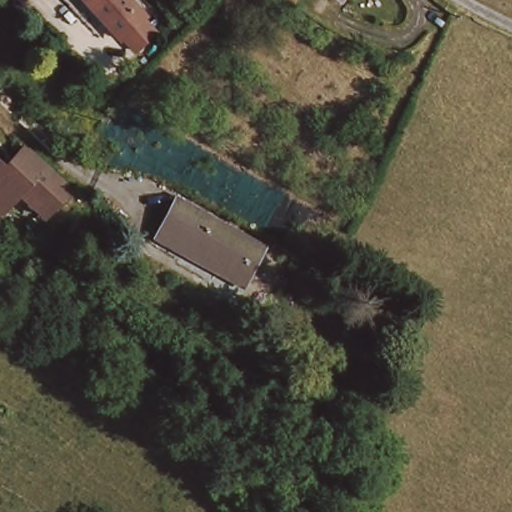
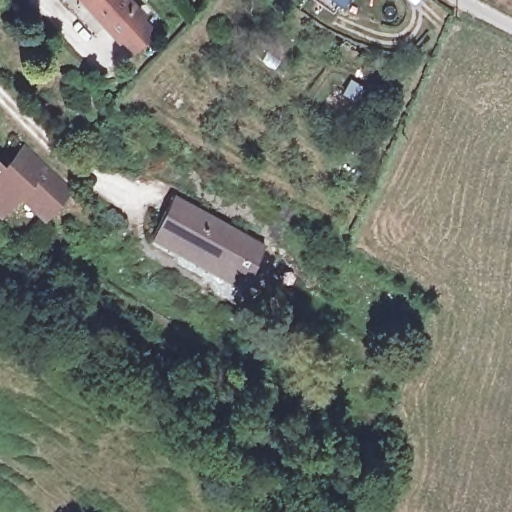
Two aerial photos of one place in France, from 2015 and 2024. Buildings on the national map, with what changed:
unchanged [(131,0),(147,20),(126,40),(114,26),(112,27),(87,0),(131,0)]
unchanged [(341,0),(338,4),(334,0),(341,0)]
unchanged [(0,204),(0,152),(3,157),(25,140),(70,186),(41,211),(22,190),(2,207),(0,204)]
unchanged [(175,241),(197,204),(250,238),(242,255),(230,247),(217,268),(175,241)]

